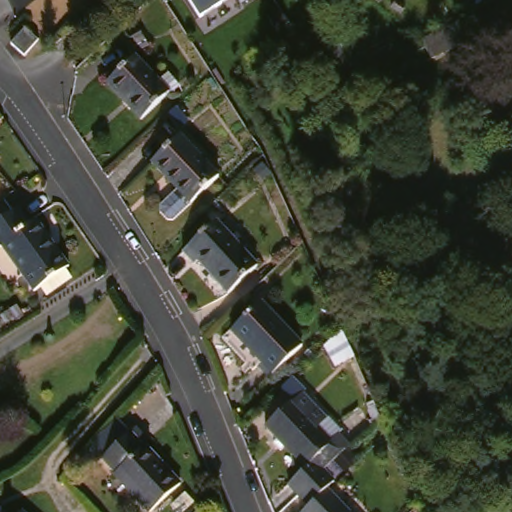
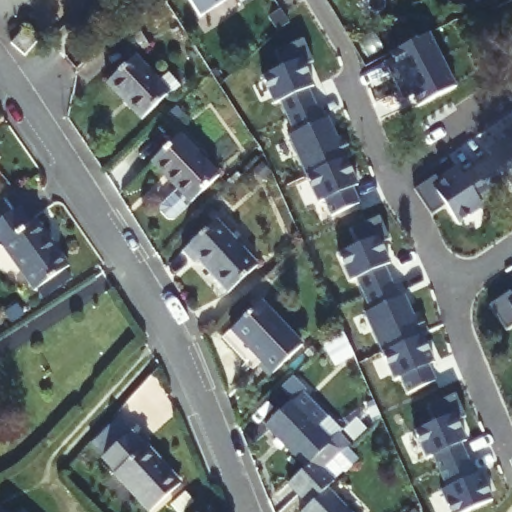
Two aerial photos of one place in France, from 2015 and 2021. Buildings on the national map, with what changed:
unchanged [(200,17),(191,0),(227,0),(200,17)]
unchanged [(243,2),(242,0),(246,0),(243,2)]
unchanged [(32,20),(47,33),(32,48),(19,36),(32,20)]
demolished [(445,71),(442,65),(435,52),(473,33),(479,44),(483,52),(445,71)]
new [(456,87),(418,106),(413,96),(404,101),(388,68),(396,64),(391,53),(429,34),(456,87)]
new [(324,199),(317,202),(289,135),(295,133),(281,100),(274,103),(263,76),(283,68),(276,51),(302,40),(313,62),(305,66),(314,85),(308,88),(323,120),(328,118),(337,138),(343,135),(352,154),(345,157),(358,184),(352,187),(359,203),(332,214),(324,199)]
unchanged [(140,57),(176,93),(149,120),(114,84),(140,57)]
new [(459,171),(462,177),(493,157),(489,151),(507,139),(503,132),(512,127),(512,186),(511,186),(508,182),(479,200),(483,207),(458,223),(445,204),(431,214),(415,189),(435,176),(441,184),(459,171)]
unchanged [(210,160),(226,174),(199,203),(180,185),(160,165),(187,137),(210,160)]
unchanged [(3,166),(0,170),(0,163),(3,166)]
unchanged [(29,209),(40,225),(45,221),(77,267),(44,291),(11,244),(5,249),(0,240),(0,229),(29,209)]
new [(402,376),(394,379),(365,313),(373,310),(358,278),(352,281),(340,252),(358,243),(351,226),(380,216),(398,260),(385,266),(392,280),(389,282),(395,298),(405,295),(414,314),(420,311),(428,332),(422,335),(435,362),(428,365),(436,381),(410,393),(402,376)]
unchanged [(221,222),(264,265),(236,293),(204,261),(200,264),(190,254),(221,222)]
new [(509,291),(512,295),(512,325),(506,329),(490,305),(509,291)]
unchanged [(270,304),(311,347),(282,375),(240,332),(270,304)]
unchanged [(349,435),(360,447),(335,471),(326,479),(310,495),(298,483),(313,467),(274,426),(299,401),(301,403),(312,393),(336,418),(325,428),(340,444),(349,435)]
new [(447,488),(433,455),(426,458),(414,431),(435,422),(428,406),(456,393),(465,415),(466,417),(457,420),(466,441),(460,444),(474,476),(481,473),(493,500),(466,512),(451,512),(442,490),(447,488)]
unchanged [(136,429),(149,444),(151,442),(185,482),(151,510),(118,470),(120,467),(108,452),(136,429)]
unchanged [(336,486),(361,512),(308,512),(307,511),(316,502),(310,495),(326,479),(335,471),(343,479),(336,486)]
unchanged [(32,512),(30,512),(30,511),(32,512)]

